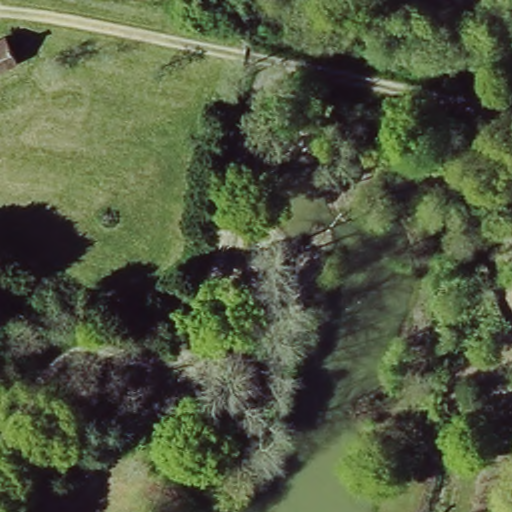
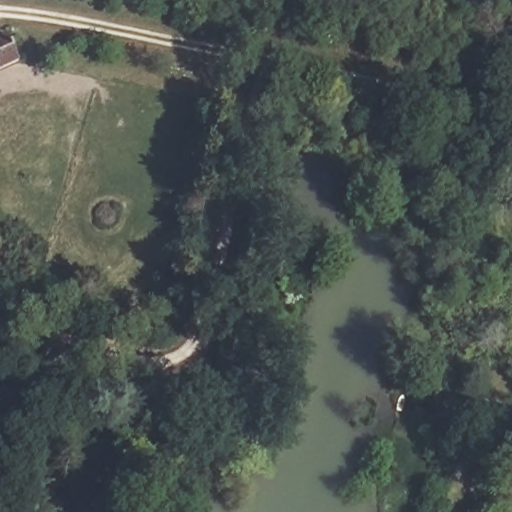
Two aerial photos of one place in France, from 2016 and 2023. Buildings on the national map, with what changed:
unchanged [(25,52),(0,63),(0,41),(17,33),(25,52)]

